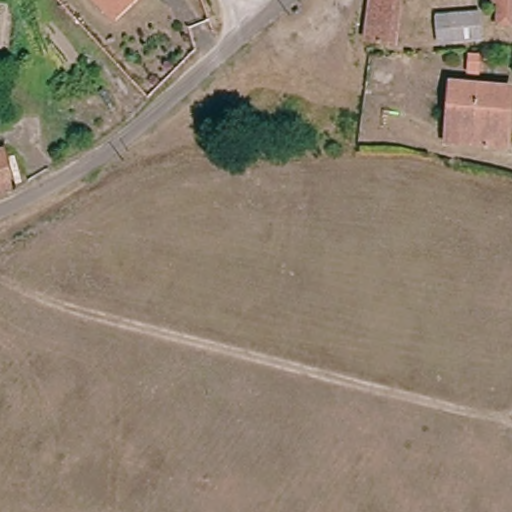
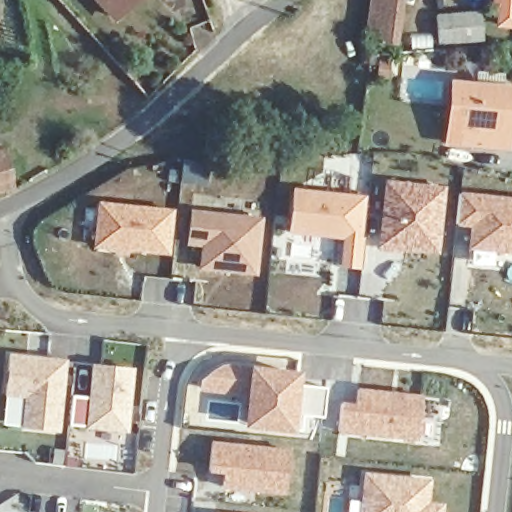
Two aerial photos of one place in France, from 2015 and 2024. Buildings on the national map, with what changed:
unchanged [(109,30),(82,0),(142,0),(122,19),(109,30)]
unchanged [(399,0),(393,43),(367,39),(372,0),(399,0)]
unchanged [(512,0),(512,31),(499,30),(501,0),(512,0)]
unchanged [(479,14),(482,39),(439,43),(437,18),(479,14)]
unchanged [(508,159),(447,154),(452,94),(500,98),(496,138),(510,139),(508,159)]
unchanged [(4,150),(11,189),(0,190),(0,151),(4,150)]
new [(446,187),(439,253),(401,249),(400,254),(377,251),(384,179),(446,187)]
new [(367,194),(359,269),(341,268),(344,239),(289,235),(293,188),(367,194)]
new [(512,254),(468,249),(470,227),(457,227),(461,192),(512,197),(512,254)]
new [(175,209),(170,255),(130,252),(129,257),(113,255),(114,249),(95,248),(98,201),(175,209)]
new [(254,274),(201,268),(203,245),(188,244),(192,214),(259,220),(254,274)]
new [(57,432),(22,428),(26,398),(6,396),(9,357),(64,363),(57,432)]
new [(225,364),(254,368),(297,374),(297,382),(326,386),(322,416),(293,412),(292,430),(257,428),(260,394),(250,394),(200,392),(201,379),(225,364)]
new [(90,399),(93,367),(132,371),(126,432),(69,427),(72,397),(90,399)]
new [(356,403),(357,387),(423,394),(419,440),(337,433),(340,402),(356,403)]
new [(290,448),(286,495),(222,490),(224,473),(208,473),(212,442),(290,448)]
new [(432,479),(430,502),(444,504),(443,512),(359,512),(364,472),(432,479)]

